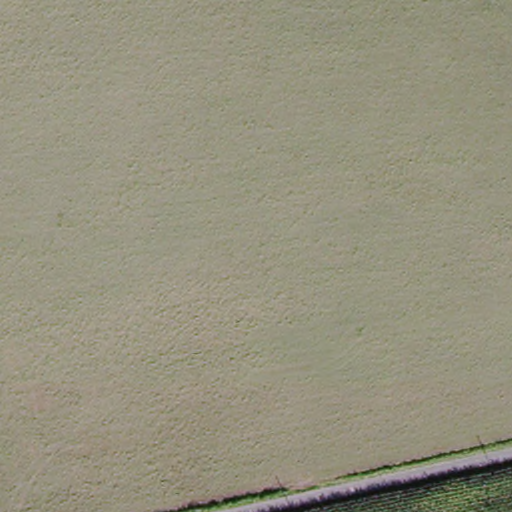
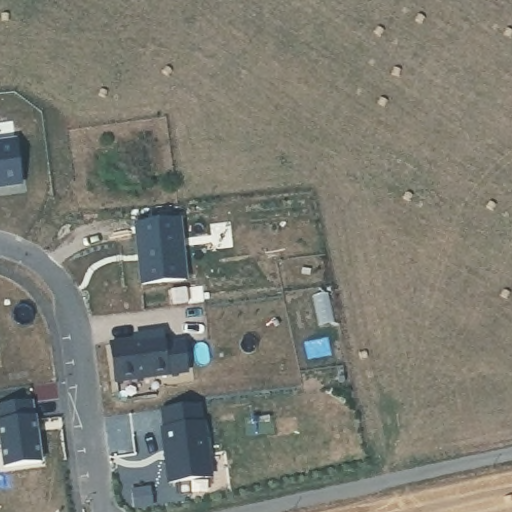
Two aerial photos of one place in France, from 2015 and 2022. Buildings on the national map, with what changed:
new [(16,139),(23,182),(0,186),(0,141),(16,139)]
new [(180,216),(187,277),(143,282),(136,222),(180,216)]
new [(144,336),(143,331),(163,328),(165,340),(183,337),(187,367),(116,378),(110,340),(144,336)]
new [(40,461),(4,467),(0,442),(0,407),(29,402),(32,417),(33,417),(40,461)]
new [(160,425),(202,418),(210,472),(168,479),(160,425)]
new [(148,484),(151,503),(134,505),(131,487),(148,484)]

